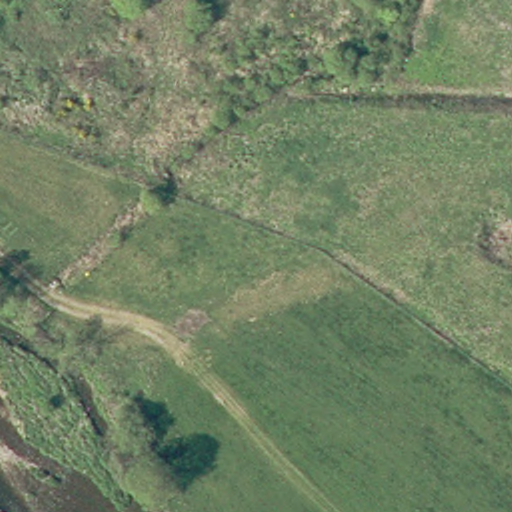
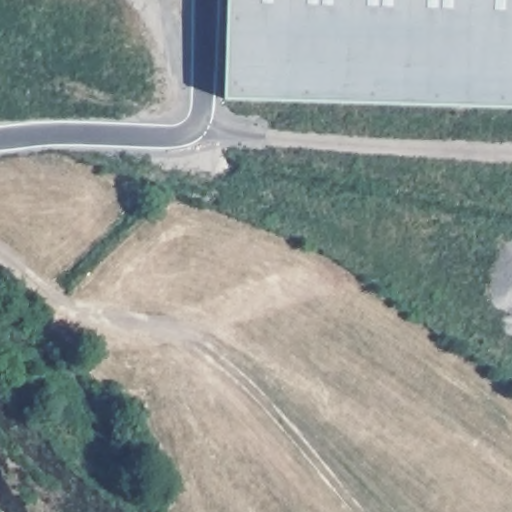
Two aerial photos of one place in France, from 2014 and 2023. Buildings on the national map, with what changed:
new [(224,99),(228,0),(512,0),(512,107),(224,99)]

